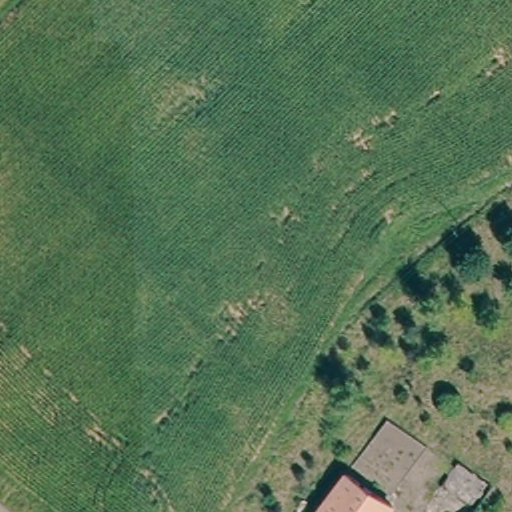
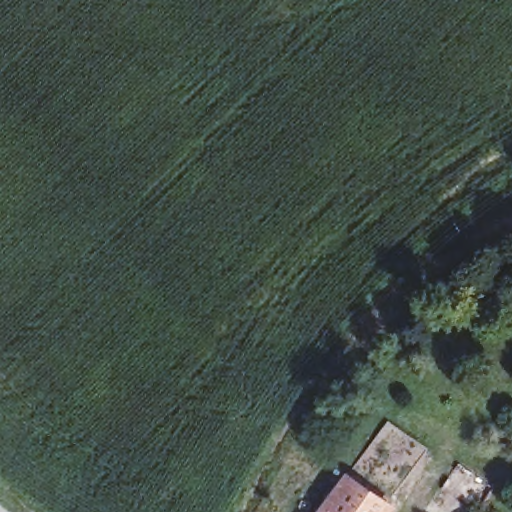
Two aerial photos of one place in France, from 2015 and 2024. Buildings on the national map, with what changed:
unchanged [(348,479),(389,510),(387,512),(324,512),(348,479)]
unchanged [(472,512),(444,512),(456,498),(472,512)]

